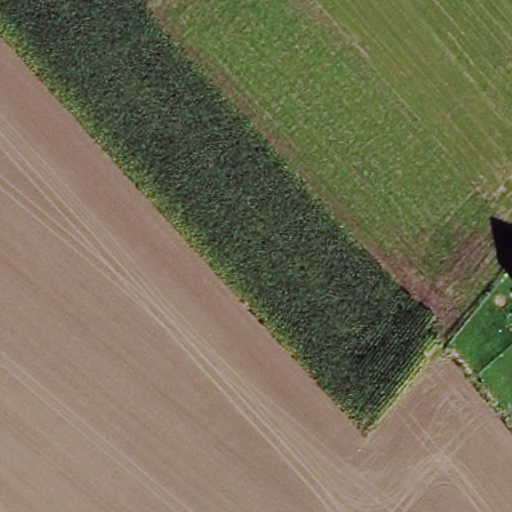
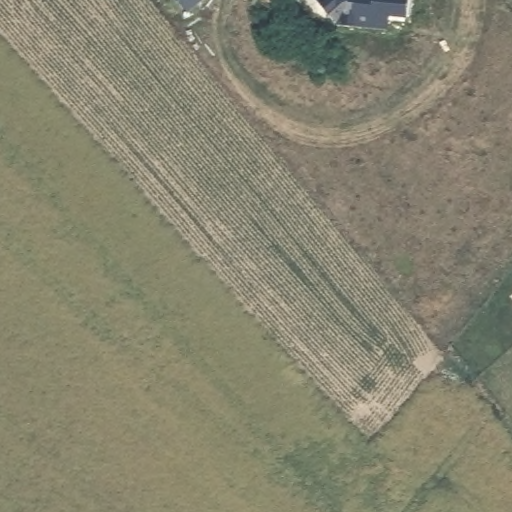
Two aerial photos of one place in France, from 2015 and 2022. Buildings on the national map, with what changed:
new [(406,15),(386,14),(385,26),(338,23),(321,0),(407,0),(406,15)]

